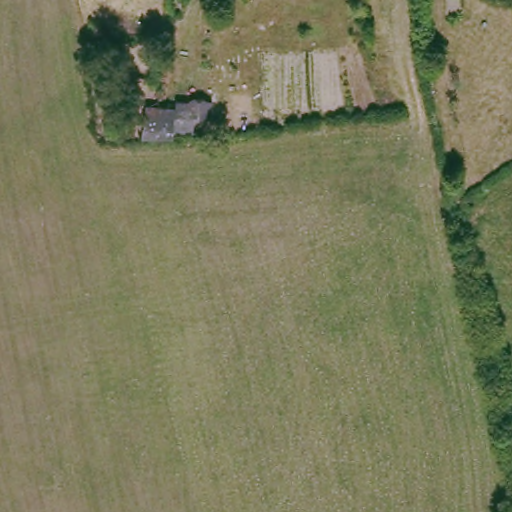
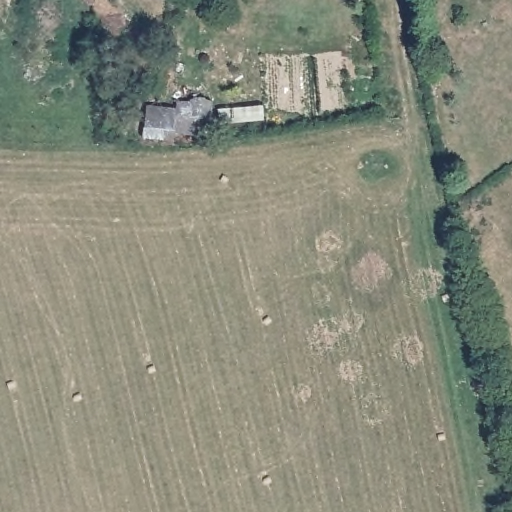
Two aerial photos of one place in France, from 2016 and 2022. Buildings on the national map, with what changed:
unchanged [(142,128),(145,101),(200,100),(200,121),(170,124),(165,139),(141,138),(142,128)]

